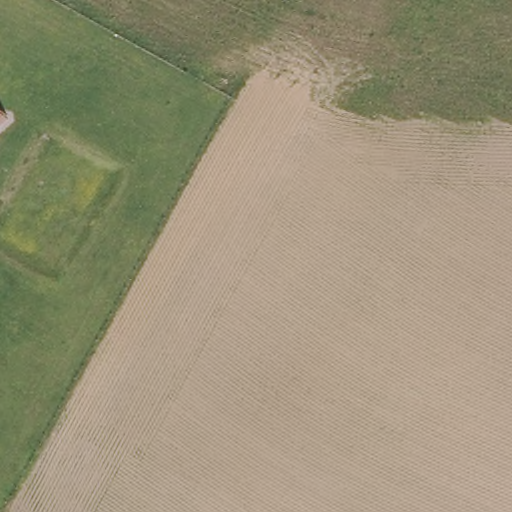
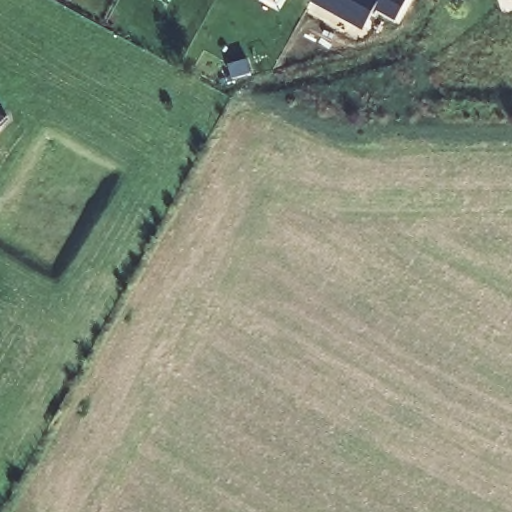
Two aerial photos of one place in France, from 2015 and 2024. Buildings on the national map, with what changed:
new [(376,11),(365,33),(313,4),(315,0),(410,0),(397,23),(376,11)]

